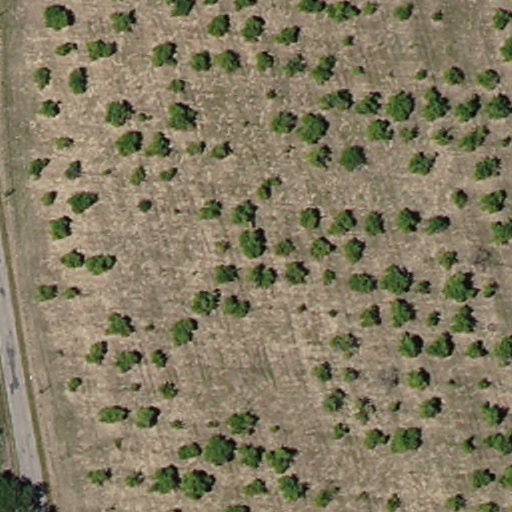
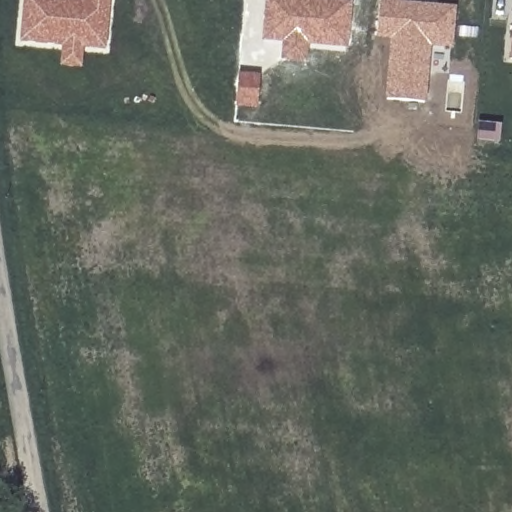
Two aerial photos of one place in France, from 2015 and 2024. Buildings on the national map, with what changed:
new [(24,0),(111,0),(106,50),(83,47),(82,67),(61,66),(62,45),(20,42),(24,0)]
new [(283,44),(263,41),(266,0),(348,0),(353,0),(349,49),(309,45),(308,62),(282,60),(283,44)]
new [(390,40),(377,38),(380,0),(400,0),(400,2),(456,6),(453,49),(430,47),(424,101),(385,99),(390,40)]
new [(510,60),(512,34),(512,60),(510,60)]
new [(239,73),(260,75),(258,109),(237,107),(239,73)]

